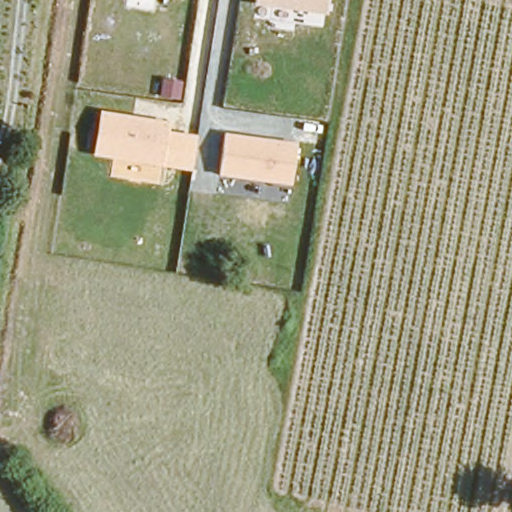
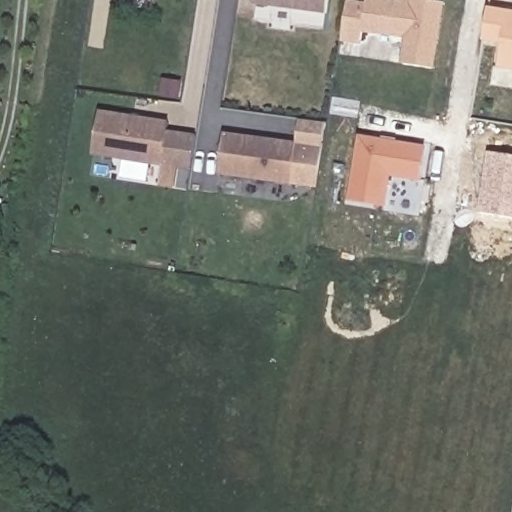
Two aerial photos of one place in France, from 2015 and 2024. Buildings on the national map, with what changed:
unchanged [(256,0),(329,0),(327,14),(255,5),(256,0)]
new [(365,3),(366,0),(398,0),(411,2),(412,0),(440,0),(430,64),(402,60),(406,33),(362,26),(360,38),(340,35),(345,0),(351,0),(365,3)]
new [(512,65),(495,62),(499,38),(480,35),(485,6),(512,11),(512,65)]
unchanged [(192,171),(164,166),(94,156),(100,110),(170,121),(169,131),(198,135),(192,171)]
new [(296,142),(300,119),(327,123),(317,189),(292,185),(296,142)]
unchanged [(296,142),(292,185),(219,176),(225,133),(296,142)]
new [(417,142),(416,146),(426,148),(421,180),(392,177),(387,207),(351,202),(361,138),(417,142)]
new [(490,152),(512,156),(512,220),(480,215),(490,152)]

